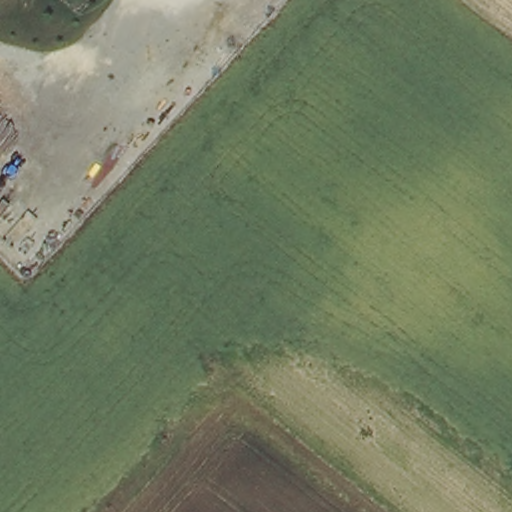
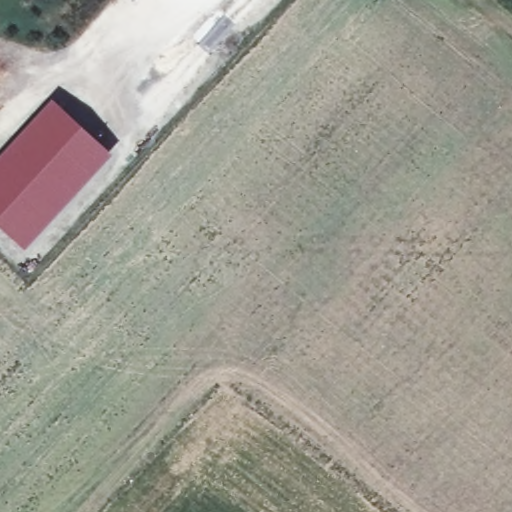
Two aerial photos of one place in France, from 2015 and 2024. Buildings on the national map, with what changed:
new [(0,228),(0,156),(51,100),(113,156),(25,251),(0,228)]

